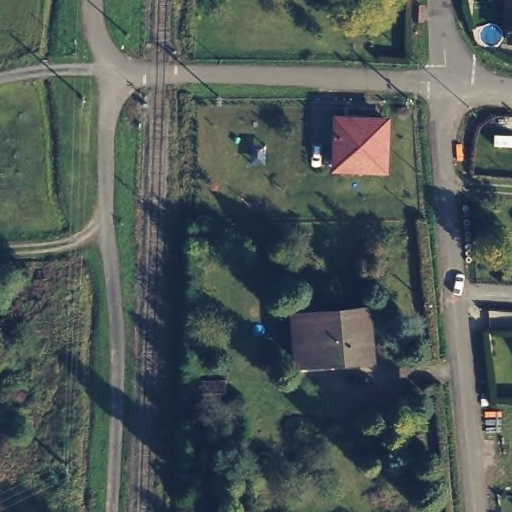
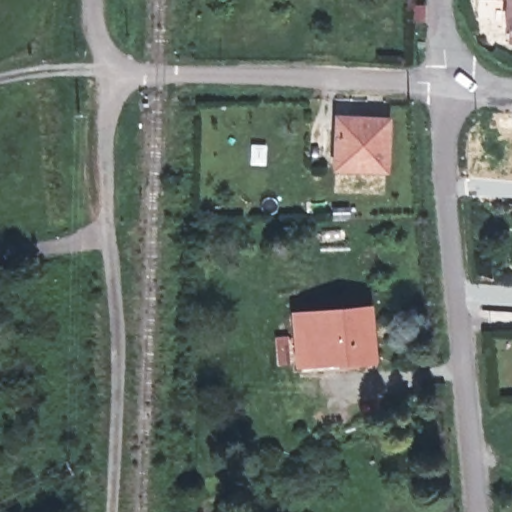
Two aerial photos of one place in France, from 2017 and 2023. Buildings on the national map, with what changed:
unchanged [(511,27),(507,26),(509,0),(512,0),(512,41),(510,41),(511,27)]
unchanged [(423,19),(415,19),(415,6),(424,6),(423,19)]
unchanged [(340,173),(343,123),(393,125),(390,175),(340,173)]
unchanged [(377,310),(381,360),(360,362),(359,359),(310,363),(306,316),(377,310)]

